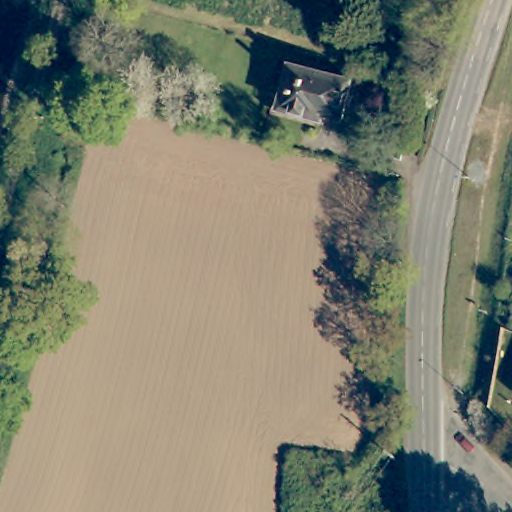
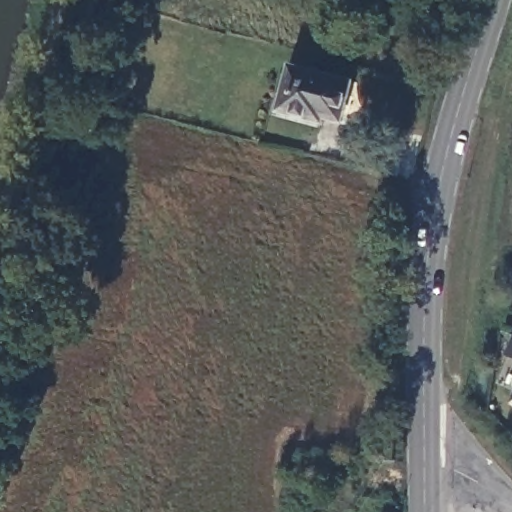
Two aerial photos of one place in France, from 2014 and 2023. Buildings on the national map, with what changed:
unchanged [(295,58),(352,74),(339,123),(320,118),(319,122),(280,112),(295,58)]

